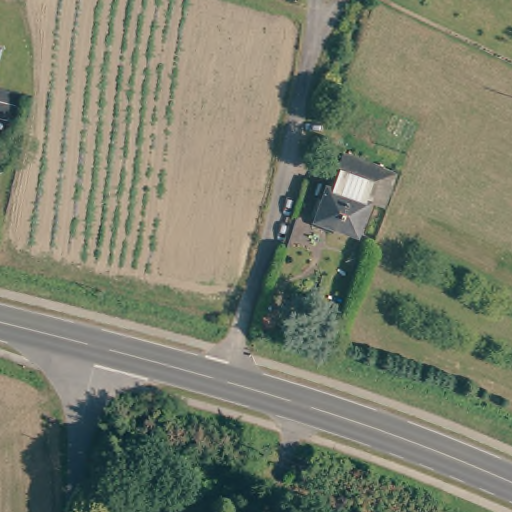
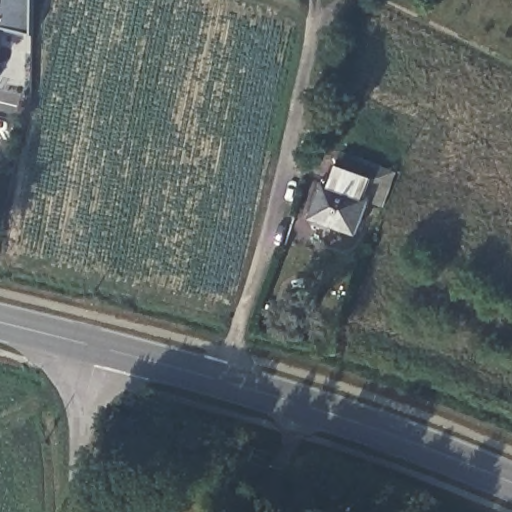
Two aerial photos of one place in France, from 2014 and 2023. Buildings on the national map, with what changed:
new [(0,28),(0,0),(33,0),(32,36),(0,28)]
unchanged [(4,44),(0,58),(0,43),(4,44)]
unchanged [(322,227),(319,233),(304,227),(308,220),(302,217),(315,191),(318,193),(327,175),(335,159),(368,175),(369,172),(382,180),(353,242),(322,227)]

